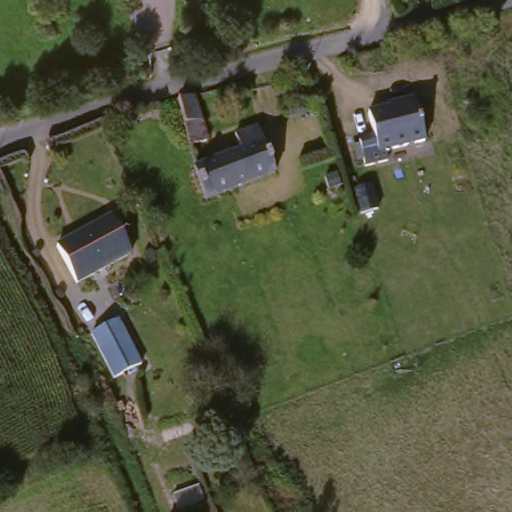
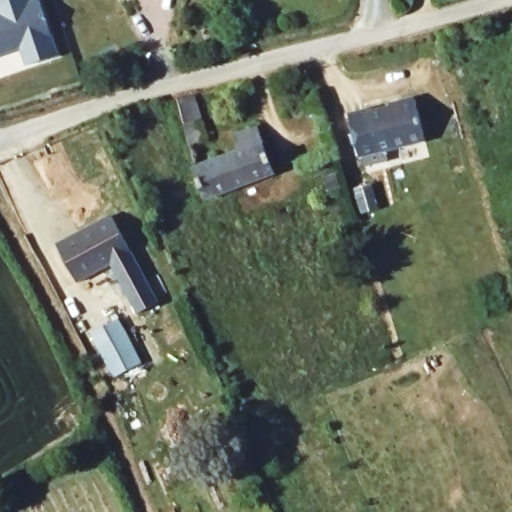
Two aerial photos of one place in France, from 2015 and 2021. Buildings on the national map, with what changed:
new [(56,51),(28,60),(23,42),(0,51),(0,0),(41,0),(56,51)]
unchanged [(203,120),(209,139),(191,144),(179,98),(196,95),(203,120)]
unchanged [(373,143),(366,118),(395,109),(394,106),(411,101),(423,142),(384,154),(386,163),(364,170),(358,148),(373,143)]
unchanged [(275,172),(206,199),(194,168),(196,167),(241,150),(235,133),(258,126),(275,172)]
unchanged [(58,245),(112,215),(132,252),(78,282),(58,245)]
unchanged [(115,377),(91,332),(119,318),(142,363),(115,377)]

